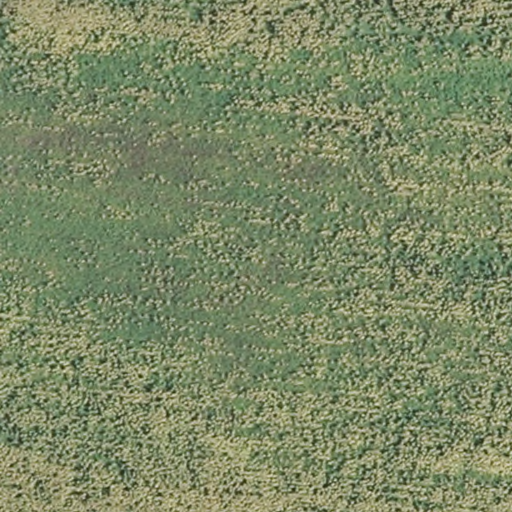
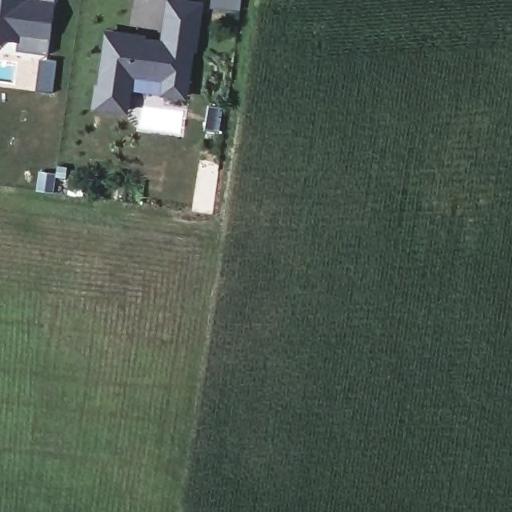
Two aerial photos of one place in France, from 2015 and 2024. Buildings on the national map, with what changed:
new [(19,51),(20,43),(0,40),(0,0),(56,0),(50,54),(19,51)]
new [(165,0),(204,0),(188,99),(162,96),(164,82),(134,78),(129,115),(94,109),(107,29),(161,36),(165,0)]

